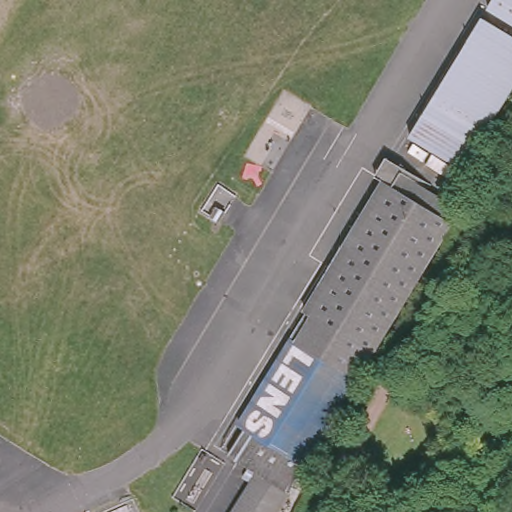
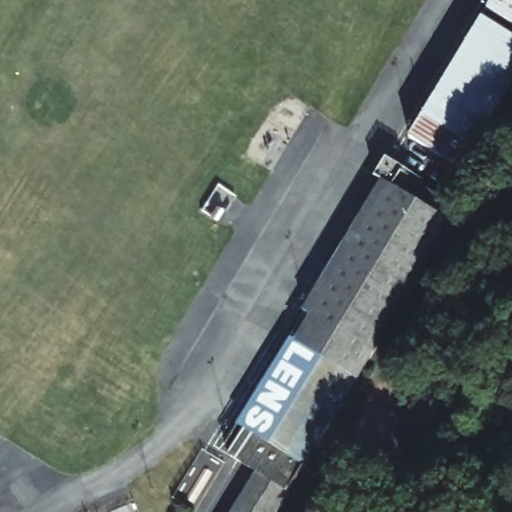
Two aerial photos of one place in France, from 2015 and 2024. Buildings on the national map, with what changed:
unchanged [(493,0),(512,0),(512,23),(487,9),(493,0)]
unchanged [(512,90),(462,170),(410,137),(482,18),(512,36),(512,90)]
unchanged [(270,511),(270,512),(229,512),(242,490),(252,475),(253,472),(250,471),(225,455),(223,455),(224,453),(233,438),(240,427),(235,424),(286,338),(292,342),(307,316),(300,311),(379,180),(387,186),(395,174),(455,210),(270,511)]

